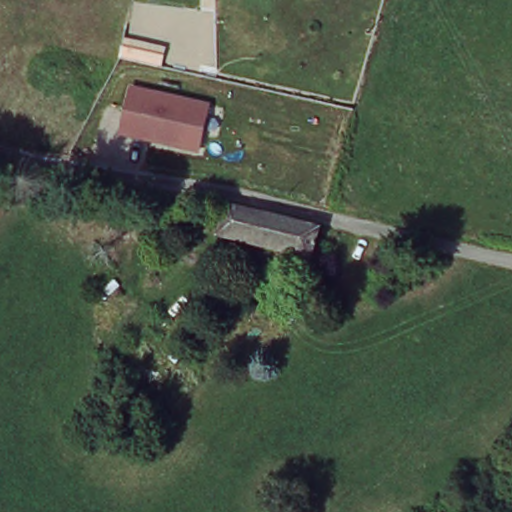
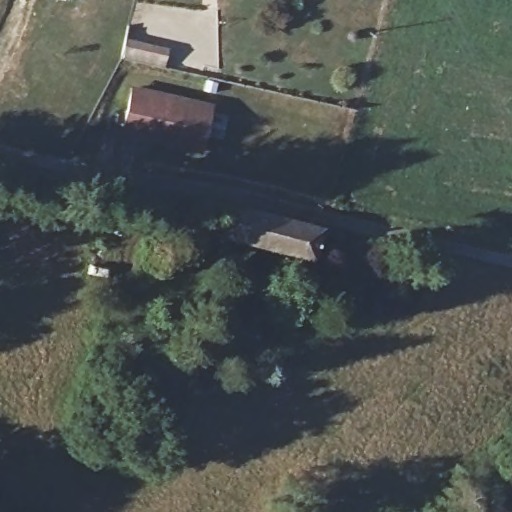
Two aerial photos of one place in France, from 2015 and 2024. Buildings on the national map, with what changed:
unchanged [(213,105),(201,153),(123,135),(134,87),(213,105)]
unchanged [(321,226),(323,226),(314,255),(224,232),(228,205),(321,226)]

